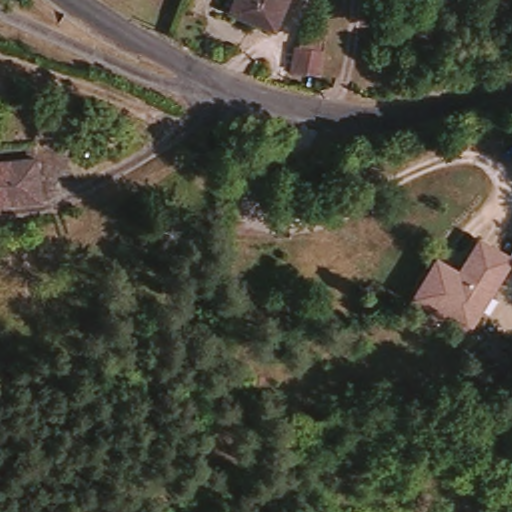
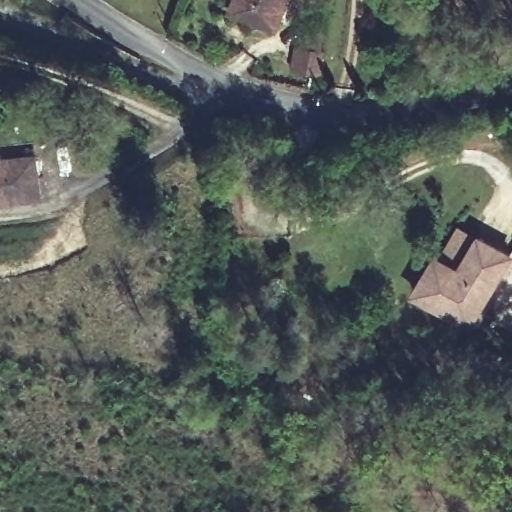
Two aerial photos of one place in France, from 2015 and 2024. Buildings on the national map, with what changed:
unchanged [(238,19),(241,0),(289,0),(285,27),(238,19)]
unchanged [(331,69),(302,64),(307,39),(333,44),(331,69)]
unchanged [(0,201),(0,161),(22,157),(38,157),(45,195),(23,198),(0,201)]
unchanged [(486,317),(464,330),(409,295),(437,255),(456,269),(476,236),(512,258),(512,268),(486,317)]

